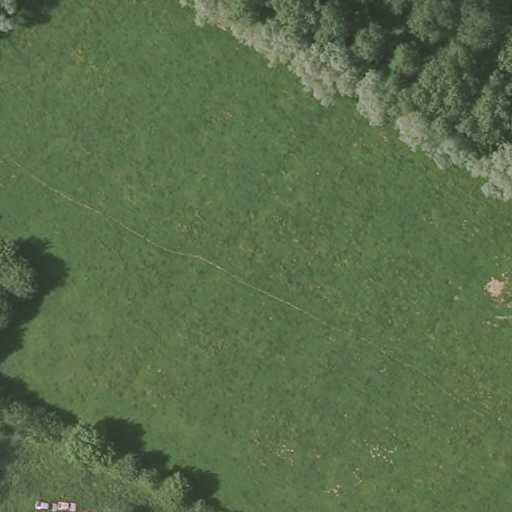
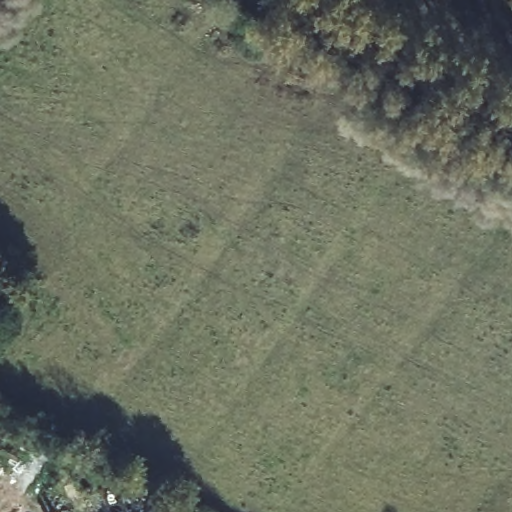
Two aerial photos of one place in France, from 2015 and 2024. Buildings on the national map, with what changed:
[]

